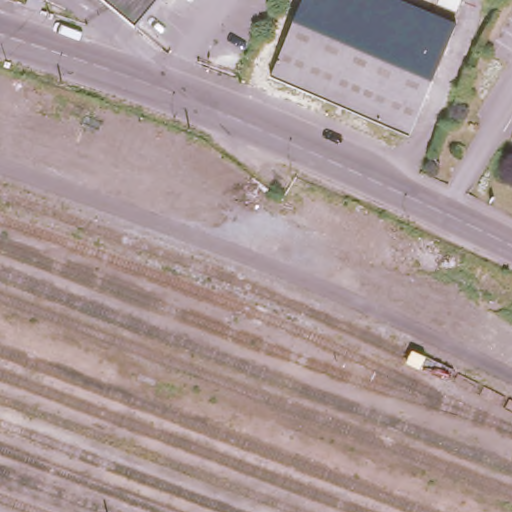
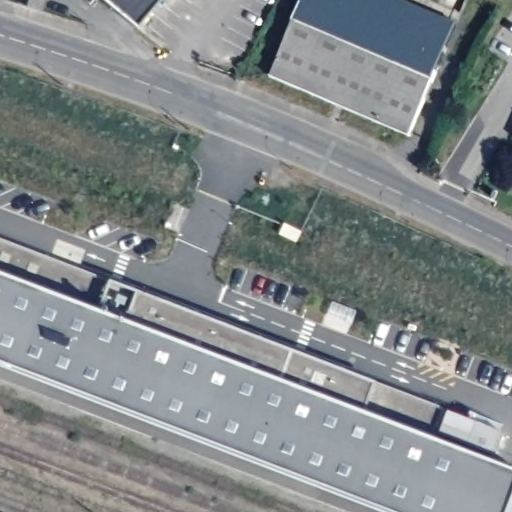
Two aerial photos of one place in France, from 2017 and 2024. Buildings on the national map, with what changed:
unchanged [(134,24),(106,0),(154,0),(134,24)]
unchanged [(409,132),(269,72),(299,0),(410,0),(458,20),(409,132)]
new [(106,279),(373,382),(445,411),(501,432),(487,467),(431,446),(357,417),(93,313),(0,277),(0,239),(106,279)]
new [(502,512),(377,512),(0,367),(0,277),(512,477),(512,492),(502,512)]

